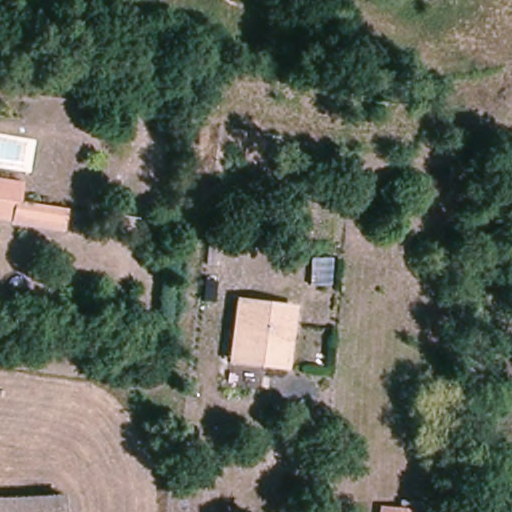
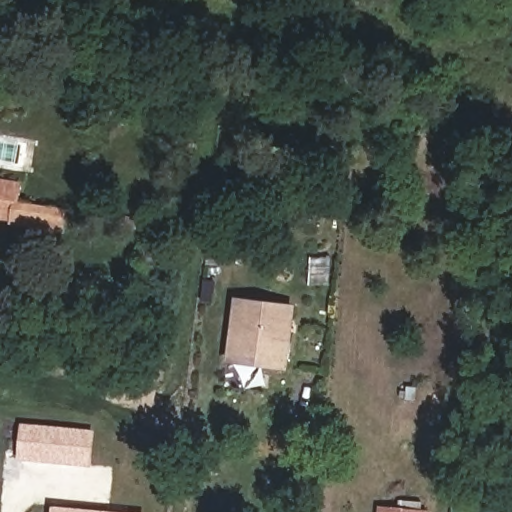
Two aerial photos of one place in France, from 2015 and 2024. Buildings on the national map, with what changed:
unchanged [(61,230),(4,221),(0,221),(0,197),(0,179),(25,183),(24,200),(62,206),(61,230)]
unchanged [(242,302),(292,308),(286,368),(236,362),(242,302)]
new [(17,460),(21,423),(95,430),(92,467),(17,460)]
demolished [(63,490),(64,512),(0,512),(0,495),(63,490)]
unchanged [(428,512),(381,512),(382,501),(429,506),(428,512)]
new [(116,512),(51,512),(52,506),(116,512)]

